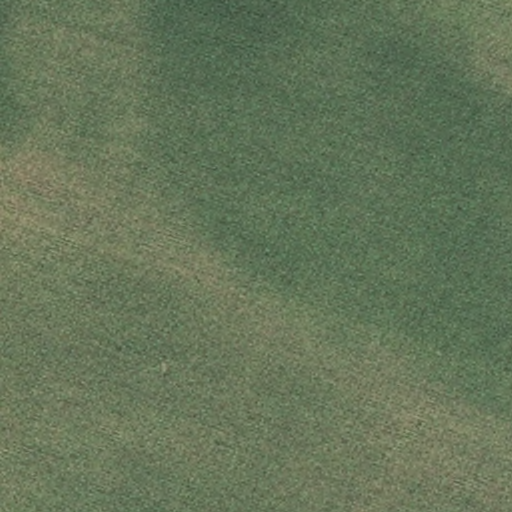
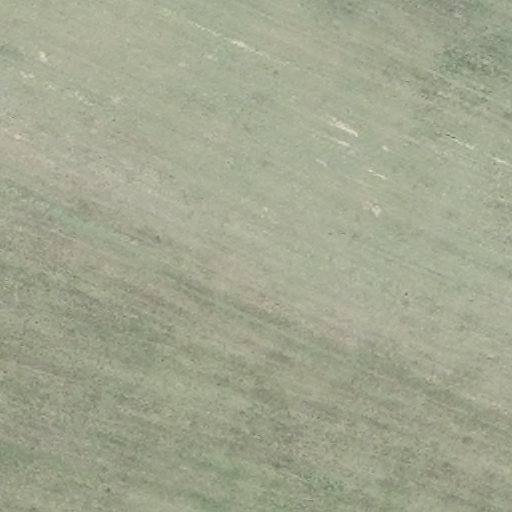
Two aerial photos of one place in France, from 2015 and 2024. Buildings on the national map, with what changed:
[]

